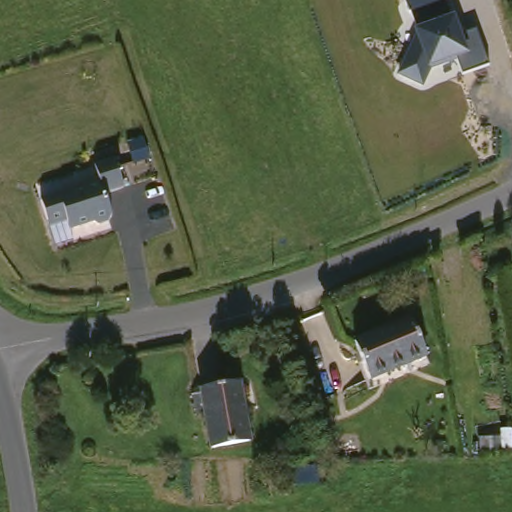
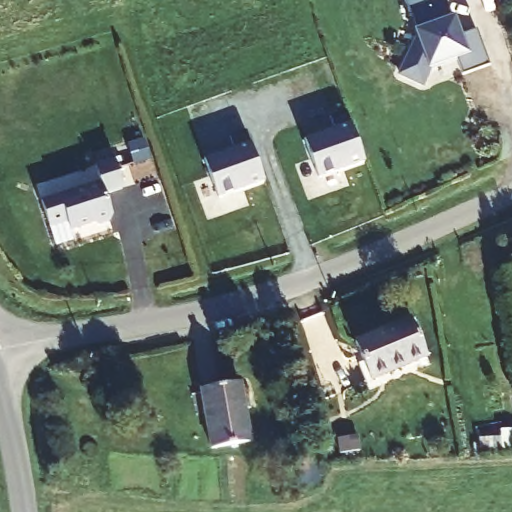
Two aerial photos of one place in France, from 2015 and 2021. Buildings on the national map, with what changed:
unchanged [(417,28),(406,0),(446,0),(451,14),(455,12),(463,34),(477,29),(489,65),(462,74),(456,58),(432,67),(424,87),(398,75),(417,28)]
new [(334,129),(331,117),(346,111),(364,164),(319,181),(305,139),(334,129)]
new [(265,183),(219,200),(204,160),(234,148),(230,137),(244,131),(265,183)]
unchanged [(136,142),(144,160),(129,165),(123,147),(136,142)]
unchanged [(105,180),(99,164),(119,157),(130,184),(111,192),(119,214),(116,219),(105,224),(99,221),(81,228),(75,225),(73,219),(55,225),(47,202),(105,180)]
unchanged [(427,354),(370,376),(356,336),(413,317),(427,354)]
unchanged [(206,384),(248,379),(257,436),(214,442),(206,384)]

